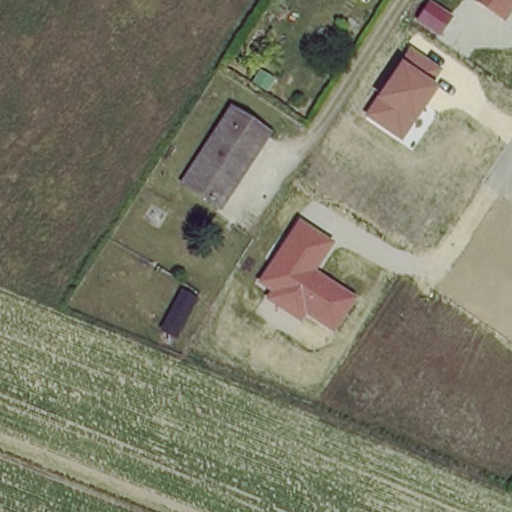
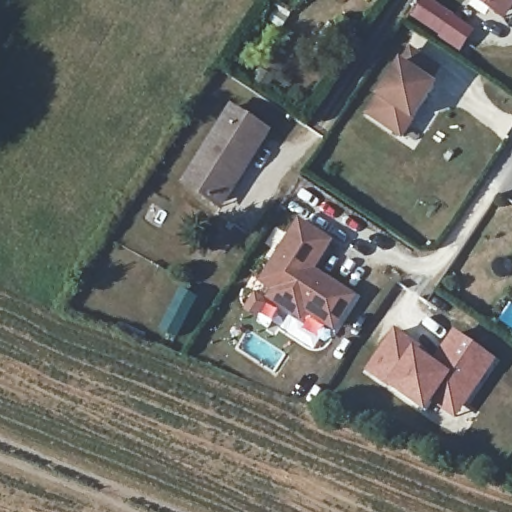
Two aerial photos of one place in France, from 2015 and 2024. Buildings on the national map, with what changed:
new [(462,52),(412,18),(424,0),(431,0),(476,31),(462,52)]
unchanged [(476,0),(512,0),(512,9),(504,20),(476,0)]
unchanged [(409,45),(441,66),(432,81),(440,85),(401,141),(363,114),(409,45)]
unchanged [(215,201),(185,182),(235,106),(271,129),(262,144),(223,206),(215,201)]
unchanged [(296,217),(334,241),(317,269),(358,294),(336,332),(305,315),(301,320),(266,300),(272,291),(257,280),(296,217)]
unchanged [(200,296),(181,336),(161,326),(182,286),(200,296)]
new [(395,328),(416,347),(432,358),(454,330),(496,360),(455,420),(434,406),(427,415),(388,387),(364,371),(395,328)]

